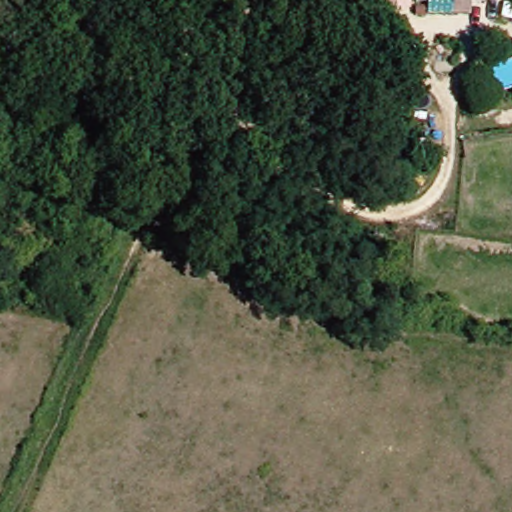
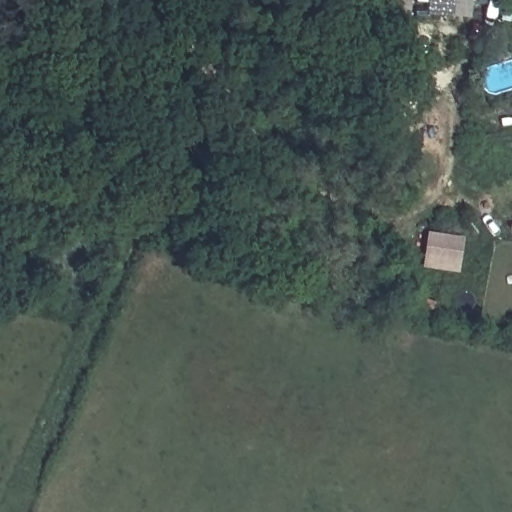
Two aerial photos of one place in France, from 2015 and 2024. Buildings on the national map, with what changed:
unchanged [(465,3),(440,2),(440,7),(423,7),(408,6),(409,0),(465,0),(465,3)]
new [(465,238),(458,275),(422,269),(428,232),(465,238)]

